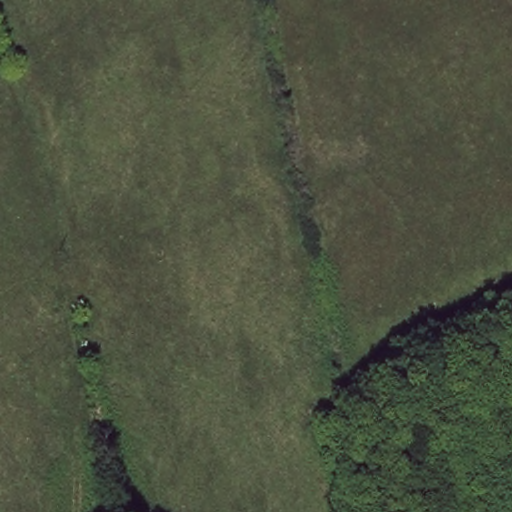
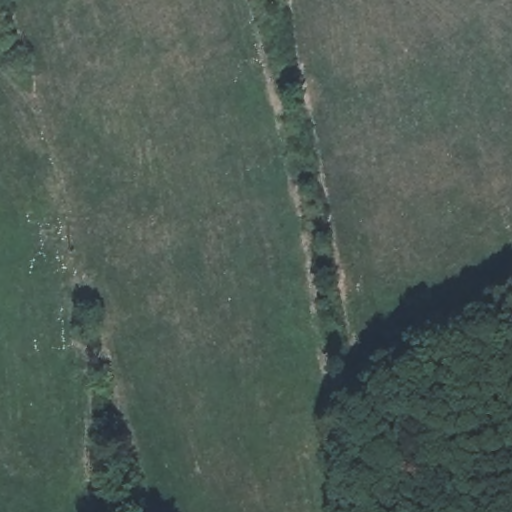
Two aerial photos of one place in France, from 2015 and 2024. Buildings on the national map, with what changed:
[]

